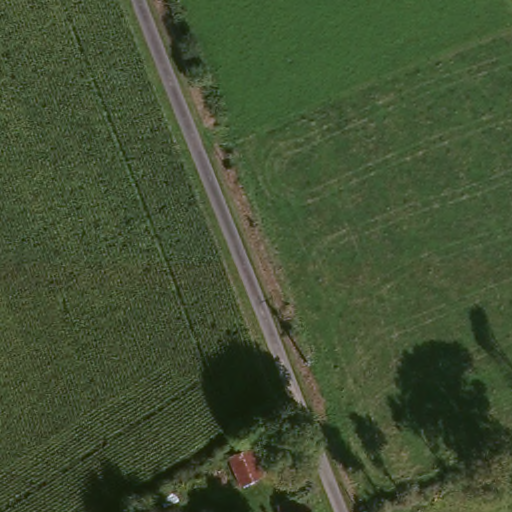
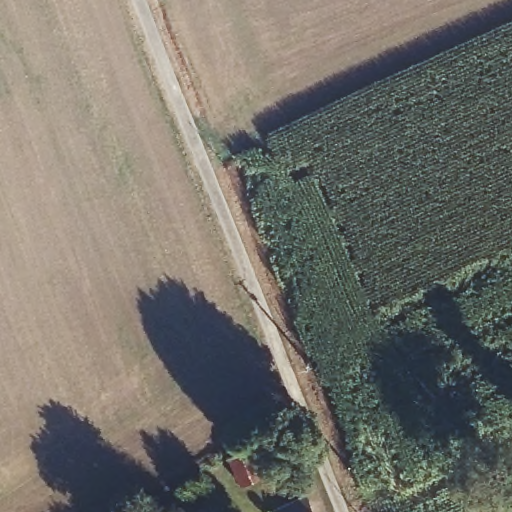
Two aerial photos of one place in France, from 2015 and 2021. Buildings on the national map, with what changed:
unchanged [(252,437),(265,466),(239,477),(228,448),(252,437)]
unchanged [(287,466),(292,480),(290,481),(293,490),(287,494),(282,485),(276,486),(272,471),(287,466)]
unchanged [(310,512),(278,512),(275,505),(302,493),(307,503),(310,512)]

